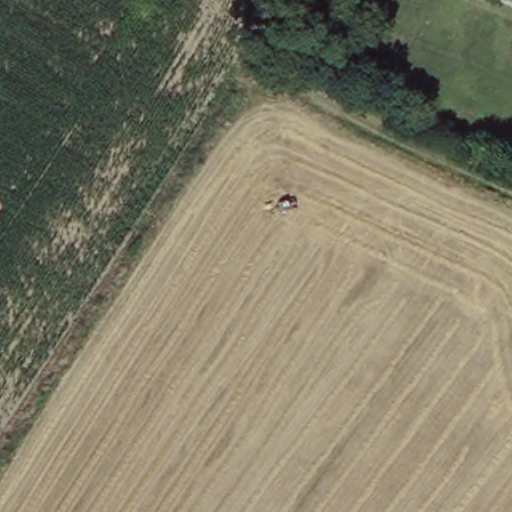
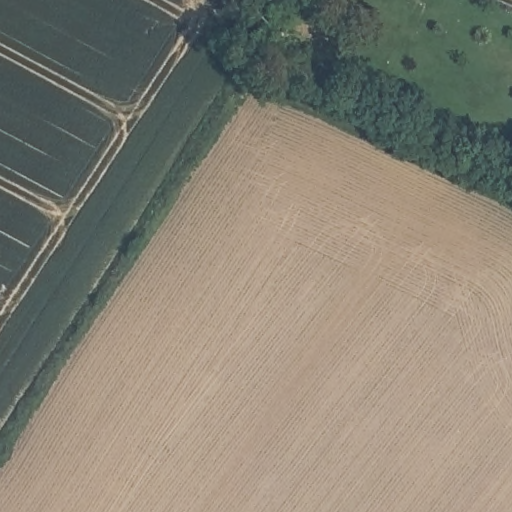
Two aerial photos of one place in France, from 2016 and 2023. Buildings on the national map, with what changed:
[]

